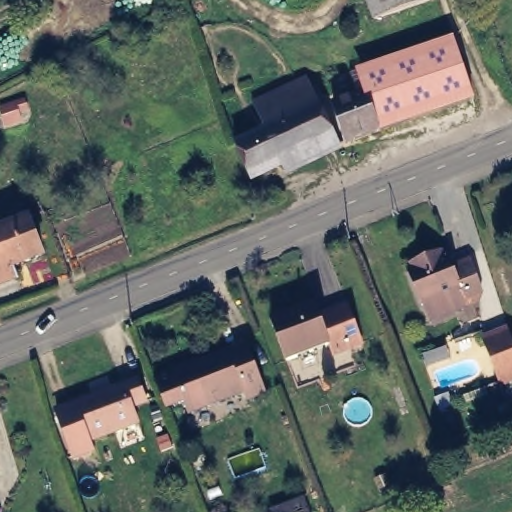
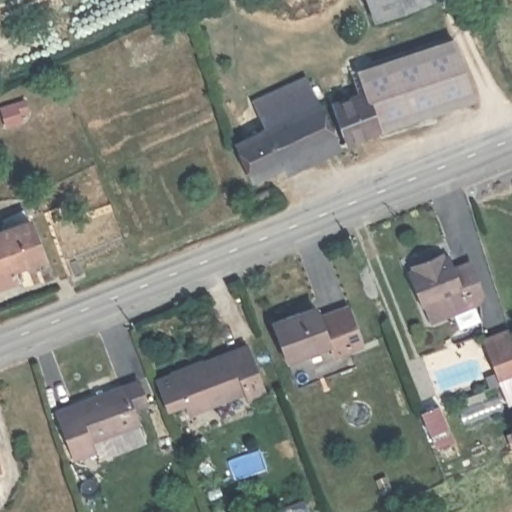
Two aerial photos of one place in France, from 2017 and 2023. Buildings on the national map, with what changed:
unchanged [(377,17),(371,0),(426,0),(377,17)]
unchanged [(367,92),(360,72),(450,39),(473,97),(347,142),(333,106),(367,92)]
unchanged [(254,140),(251,132),(259,129),(262,136),(271,133),(260,105),(313,84),(338,145),(256,179),(241,146),(254,140)]
unchanged [(17,102),(23,119),(7,125),(1,108),(17,102)]
unchanged [(2,235),(13,231),(15,235),(29,230),(43,265),(0,281),(0,241),(5,240),(2,235)]
unchanged [(415,264),(442,253),(445,263),(453,260),(458,272),(472,268),(485,302),(470,307),(472,312),(428,329),(422,312),(420,313),(407,277),(417,273),(415,264)]
unchanged [(298,312),(302,316),(316,312),(320,316),(350,306),(365,346),(333,357),(330,346),(288,360),(275,320),(298,312)]
unchanged [(503,385),(485,341),(508,332),(512,342),(512,381),(503,385)]
unchanged [(246,339),(265,387),(247,395),(242,389),(186,410),(171,366),(246,339)]
unchanged [(135,379),(145,404),(133,408),(138,422),(90,440),(94,452),(74,460),(59,418),(56,410),(76,403),(123,384),(135,379)]
unchanged [(43,512),(34,512),(31,503),(52,496),(56,507),(43,512)]

